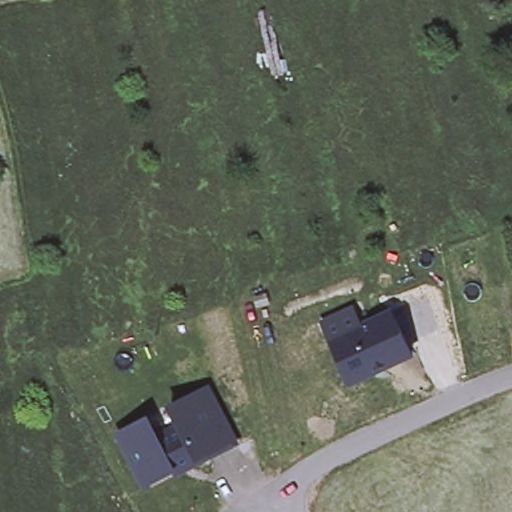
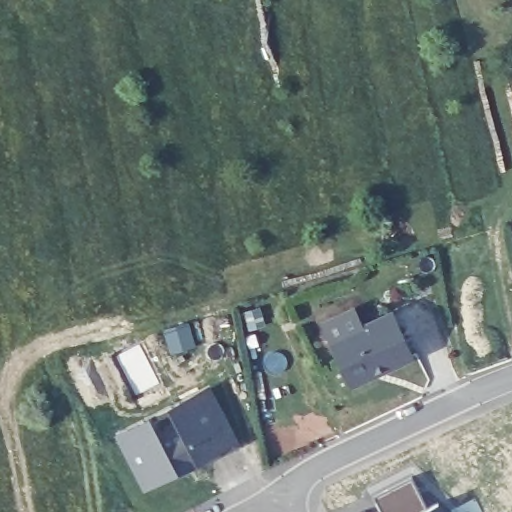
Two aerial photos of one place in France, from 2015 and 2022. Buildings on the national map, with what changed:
unchanged [(413,355),(352,382),(333,340),(324,322),(354,308),(362,326),(393,312),(413,355)]
unchanged [(191,463),(152,483),(143,480),(119,434),(208,387),(237,443),(192,466),(191,463)]
new [(411,475),(426,507),(441,500),(446,512),(381,512),(373,493),(411,475)]

